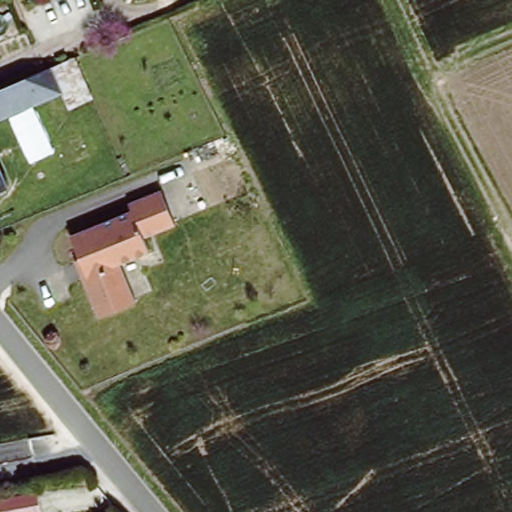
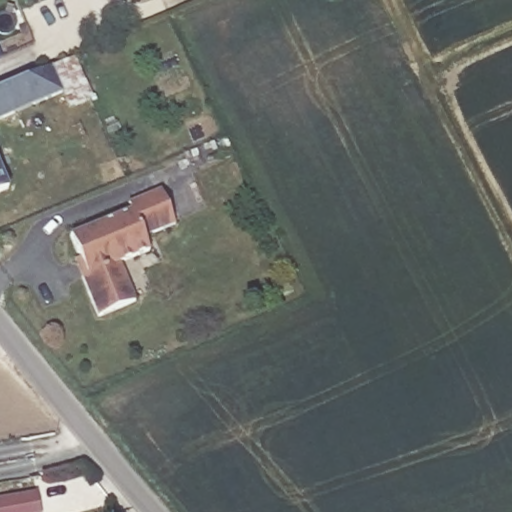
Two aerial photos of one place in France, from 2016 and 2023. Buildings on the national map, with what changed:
unchanged [(52,66),(71,59),(89,98),(69,107),(62,91),(0,120),(0,89),(52,66)]
unchanged [(9,187),(0,191),(0,168),(9,187)]
unchanged [(94,314),(77,273),(83,271),(67,232),(127,206),(124,198),(156,184),(172,220),(140,234),(145,247),(114,260),(131,298),(94,314)]
unchanged [(37,493),(39,512),(0,512),(0,498),(37,493)]

